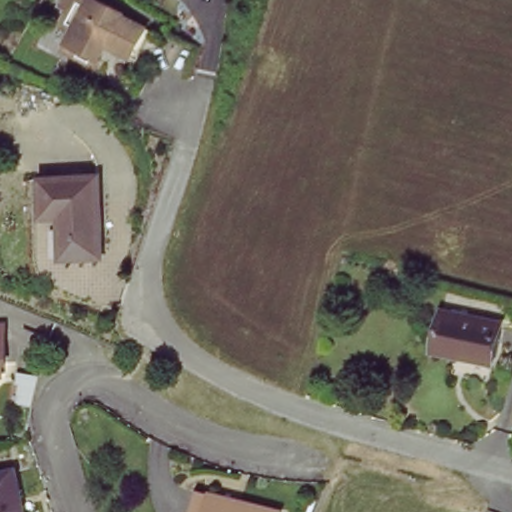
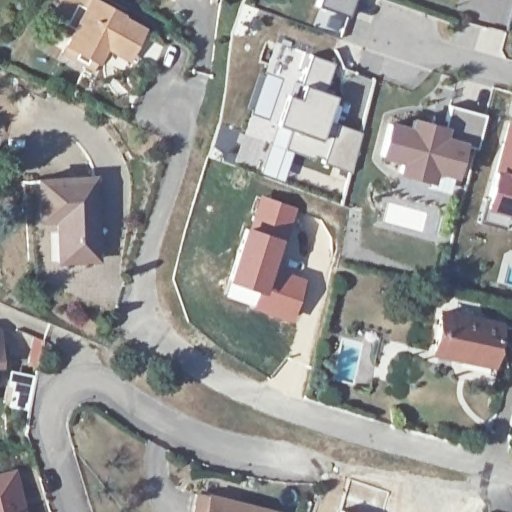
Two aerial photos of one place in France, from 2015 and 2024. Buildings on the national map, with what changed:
unchanged [(67,47),(74,35),(62,29),(72,12),(61,6),(64,0),(102,0),(126,13),(125,16),(154,32),(151,38),(165,46),(155,65),(142,57),(139,62),(117,50),(108,45),(99,63),(96,69),(65,52),(67,47)]
new [(317,6),(319,0),(355,0),(349,18),(317,6)]
new [(332,62),(323,92),(335,97),(333,102),(340,105),(334,122),(362,132),(350,172),(321,162),(282,147),(289,128),(274,123),(285,93),(291,96),(295,82),(299,84),(309,54),(332,62)]
new [(486,116),(478,149),(464,145),(447,205),(394,191),(402,161),(380,155),(390,124),(412,131),(415,120),(432,125),(434,119),(446,121),(450,105),(486,116)]
new [(492,167),(505,119),(512,121),(512,216),(508,215),(509,212),(487,207),(490,199),(484,197),(492,167)]
unchanged [(96,258),(57,259),(57,217),(39,217),(37,180),(95,177),(96,258)]
new [(258,194),(296,207),(282,237),(247,225),(258,194)]
new [(490,199),(487,207),(509,212),(505,228),(478,221),(484,197),(490,199)]
new [(244,224),(247,225),(282,237),(272,266),(261,292),(252,290),(222,282),(244,224)]
new [(252,290),(261,292),(272,266),(306,278),(288,322),(247,306),(252,290)]
unchanged [(380,303),(377,318),(367,317),(370,302),(380,303)]
unchanged [(457,357),(432,352),(442,311),(500,323),(492,360),(490,366),(457,357)]
unchanged [(2,365),(0,365),(0,325),(1,342),(2,365)]
unchanged [(23,512),(0,512),(0,474),(13,471),(23,512)]
unchanged [(202,496),(212,498),(268,512),(198,512),(202,496)]
new [(338,507),(352,512),(337,512),(338,507)]

